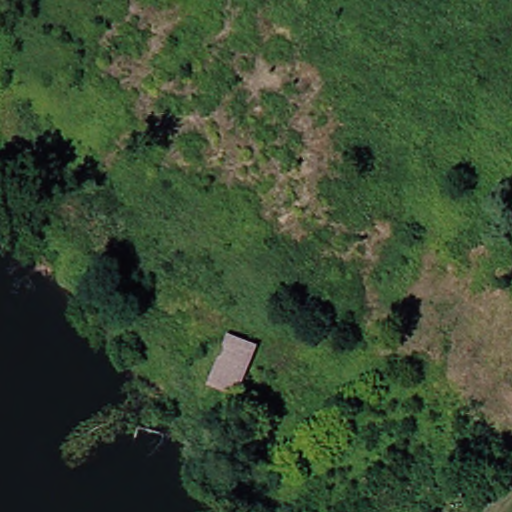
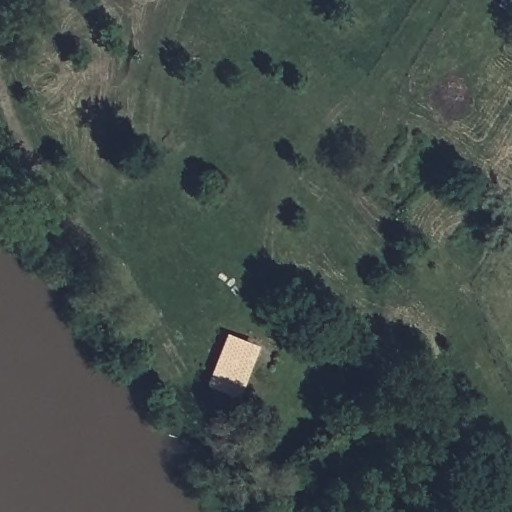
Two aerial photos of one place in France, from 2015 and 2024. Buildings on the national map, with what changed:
unchanged [(247,352),(228,396),(205,387),(225,343),(247,352)]

